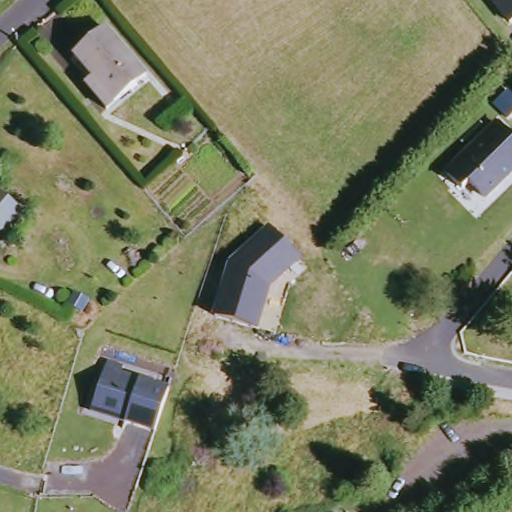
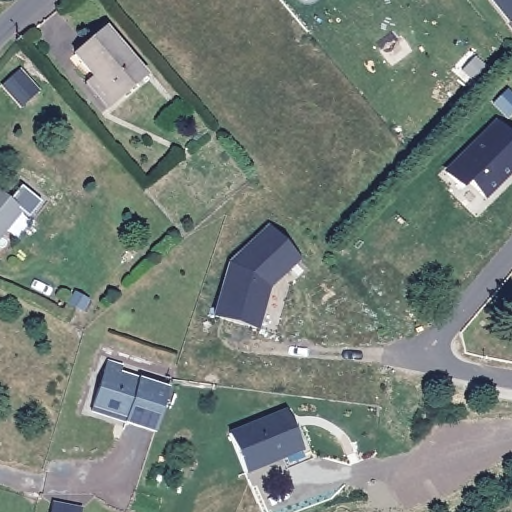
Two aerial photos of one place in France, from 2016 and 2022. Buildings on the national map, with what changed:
unchanged [(490,0),(512,0),(512,24),(510,25),(490,0)]
unchanged [(107,108),(87,85),(90,81),(78,67),(82,62),(76,52),(110,25),(150,77),(107,108)]
unchanged [(445,173),(498,121),(512,135),(512,178),(487,202),(472,185),(464,193),(445,173)]
unchanged [(0,200),(5,194),(26,211),(12,232),(16,236),(7,247),(0,242),(0,200)]
unchanged [(230,264),(270,227),(303,262),(272,291),(260,333),(213,319),(230,264)]
unchanged [(97,406),(107,372),(110,365),(123,369),(121,376),(172,391),(160,431),(130,422),(95,412),(97,406)]
new [(228,433),(287,411),(303,450),(245,474),(228,433)]

